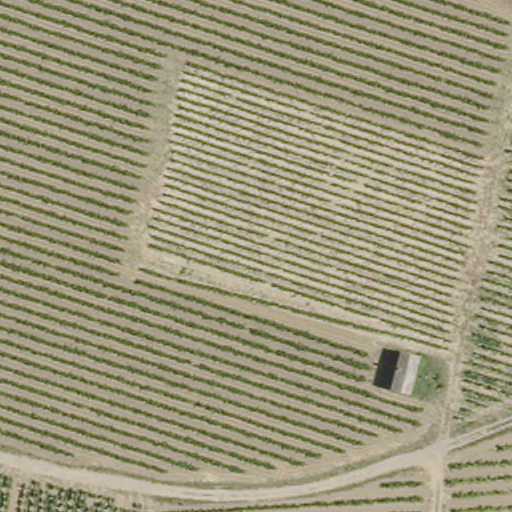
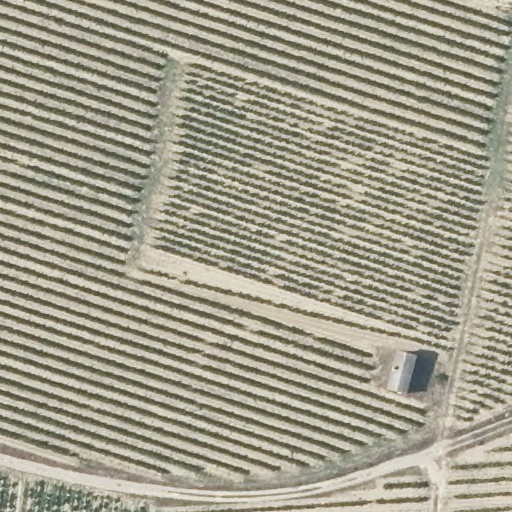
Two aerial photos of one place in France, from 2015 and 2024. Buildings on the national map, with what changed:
unchanged [(419,352),(407,391),(388,385),(398,347),(419,352)]

